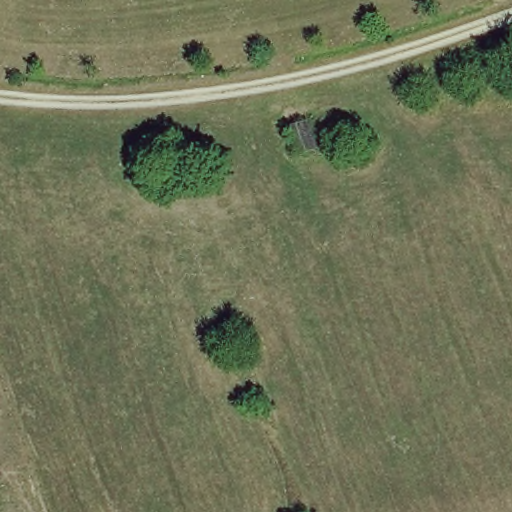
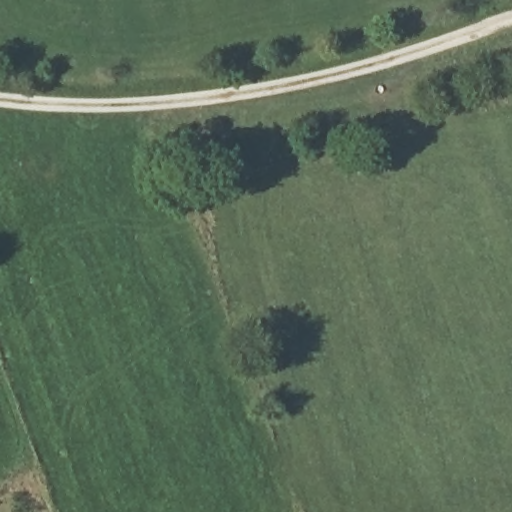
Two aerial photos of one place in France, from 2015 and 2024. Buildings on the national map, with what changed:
unchanged [(299,161),(286,128),(313,119),(324,154),(299,161)]

